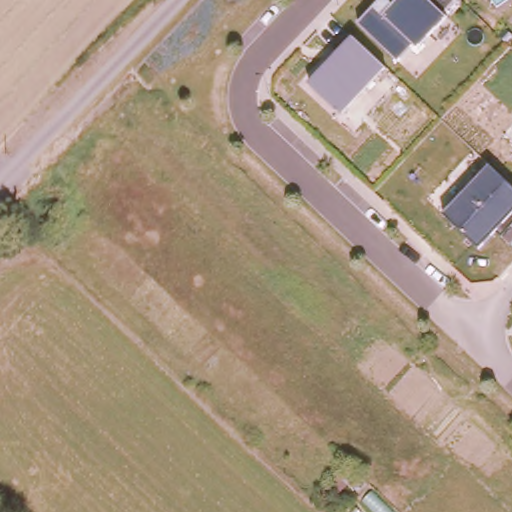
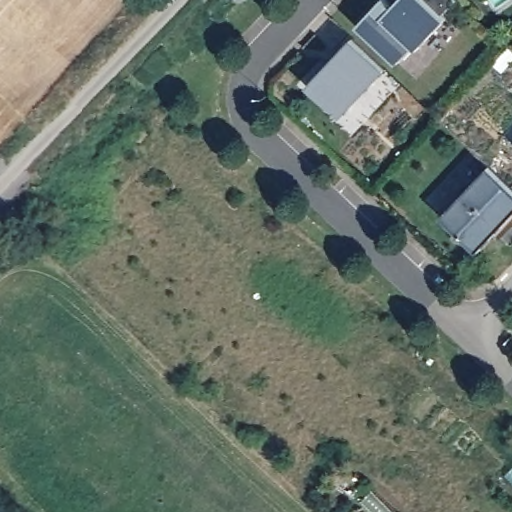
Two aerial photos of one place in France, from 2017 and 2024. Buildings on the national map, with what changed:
unchanged [(446,17),(417,48),(412,45),(398,60),(360,24),(381,0),(388,0),(392,3),(396,0),(458,0),(459,0),(446,17)]
unchanged [(386,69),(343,116),(308,84),(353,36),(386,69)]
unchanged [(512,216),(480,249),(445,218),(490,169),(512,187),(512,216)]

